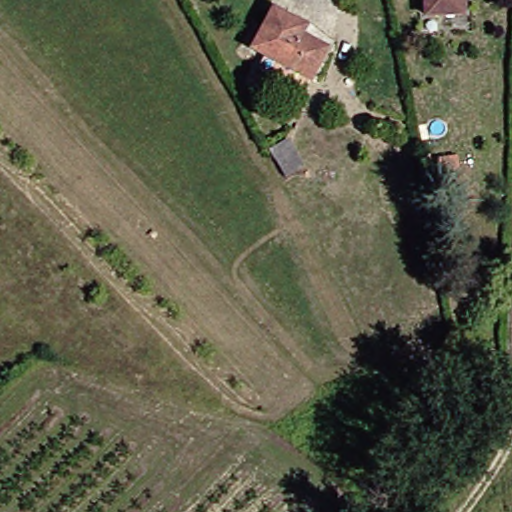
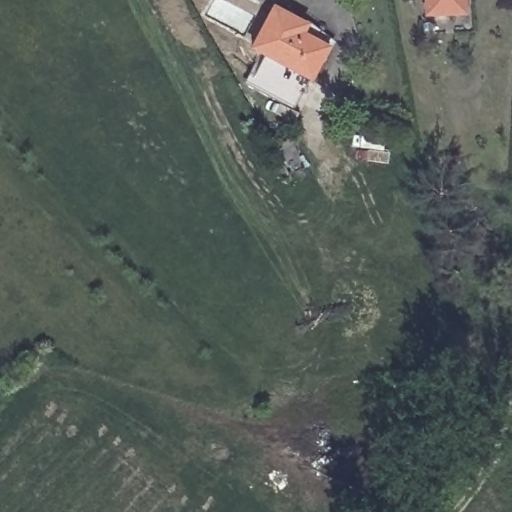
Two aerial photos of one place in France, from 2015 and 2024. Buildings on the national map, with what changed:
unchanged [(463,12),(425,11),(425,0),(463,0),(463,12)]
unchanged [(252,86),(257,77),(270,50),(258,44),(276,8),(306,23),(334,37),(329,46),(301,100),(296,110),(252,86)]
unchanged [(289,139),(287,131),(303,123),(321,159),(290,176),(272,149),(289,139)]
unchanged [(463,152),(464,170),(444,170),(443,152),(463,152)]

